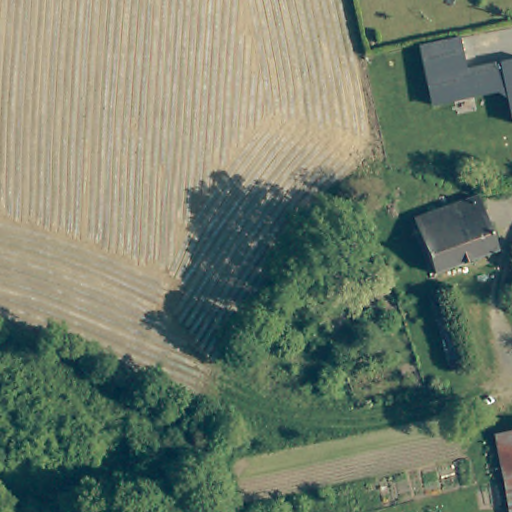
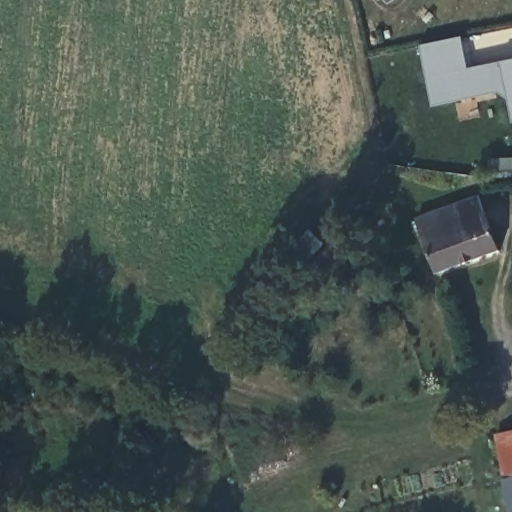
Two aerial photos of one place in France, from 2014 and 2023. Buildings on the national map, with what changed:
unchanged [(460,38),(469,71),(512,61),(512,121),(507,100),(498,94),(432,108),(420,47),(460,38)]
unchanged [(431,212),(474,197),(496,251),(433,273),(414,219),(431,212)]
unchanged [(502,470),(494,432),(512,429),(512,473),(503,475),(502,470)]
unchanged [(512,473),(512,512),(511,512),(503,475),(512,473)]

